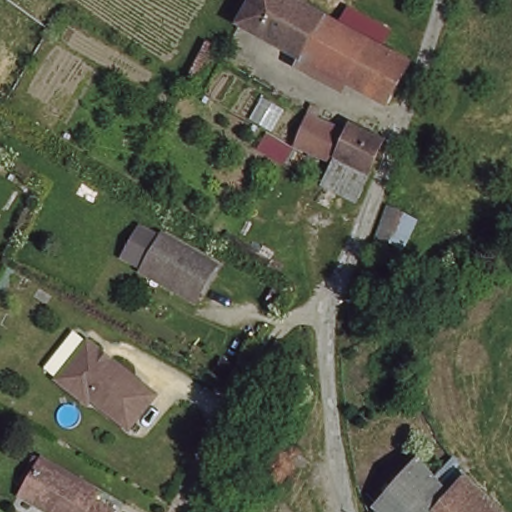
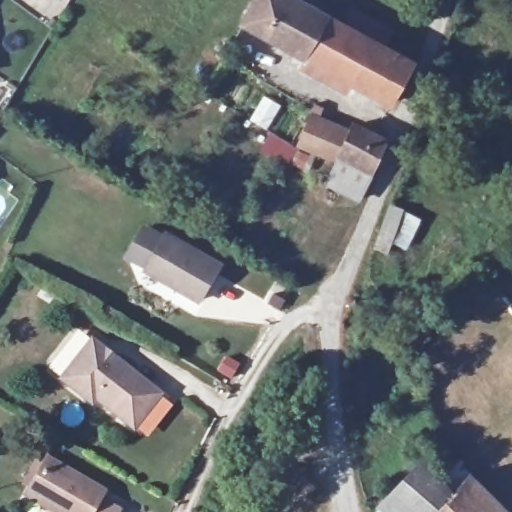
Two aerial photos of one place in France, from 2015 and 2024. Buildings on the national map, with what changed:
unchanged [(406,94),(403,107),(243,30),(256,0),(292,0),(342,22),(350,5),(393,29),(387,42),(416,56),(415,65),(406,94)]
unchanged [(329,187),(335,170),(311,159),(304,171),(260,149),(270,129),(297,143),(309,119),(350,137),(355,127),(390,141),(385,154),(376,182),(370,204),(329,187)]
unchanged [(424,217),(409,256),(376,247),(392,202),(424,217)]
unchanged [(191,298),(135,263),(156,227),(213,261),(191,298)]
unchanged [(94,340),(162,395),(135,428),(97,397),(94,402),(64,377),(94,340)]
unchanged [(473,472),(511,512),(380,512),(375,507),(425,458),(456,486),(473,472)]
unchanged [(101,493),(95,503),(108,512),(46,512),(44,510),(25,497),(30,492),(52,460),(101,493)]

